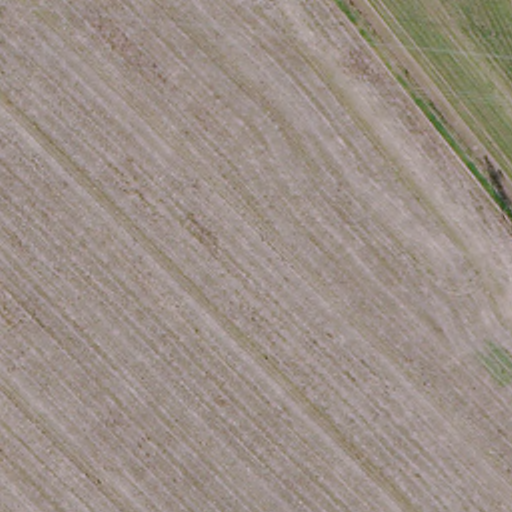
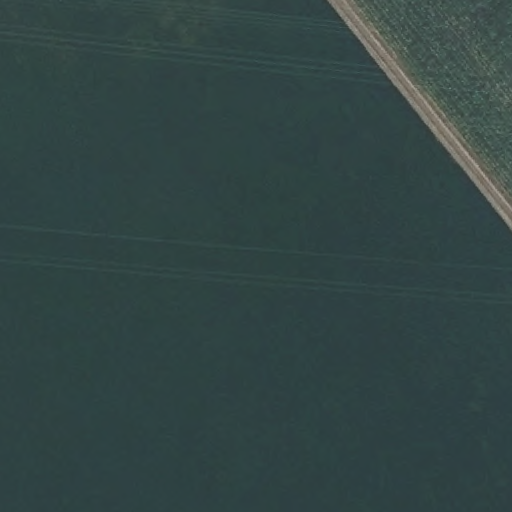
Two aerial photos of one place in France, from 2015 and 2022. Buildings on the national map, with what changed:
[]

